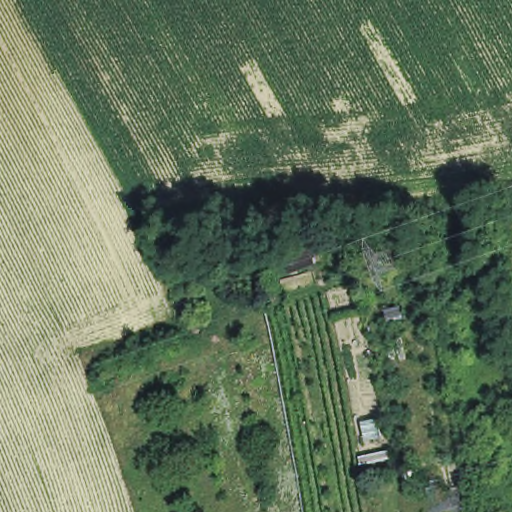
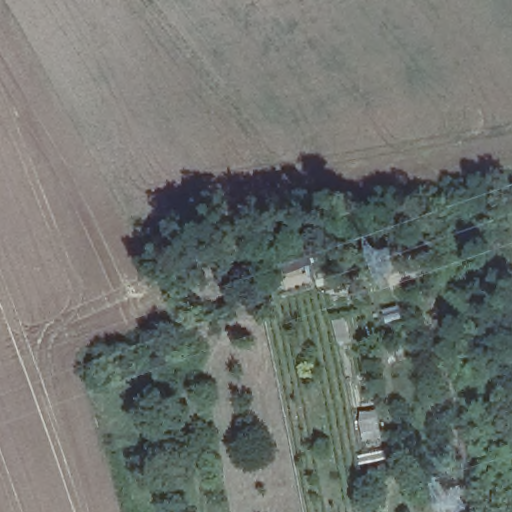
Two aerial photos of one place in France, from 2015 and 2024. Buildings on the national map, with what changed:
unchanged [(277,249),(306,240),(315,266),(287,271),(277,249)]

